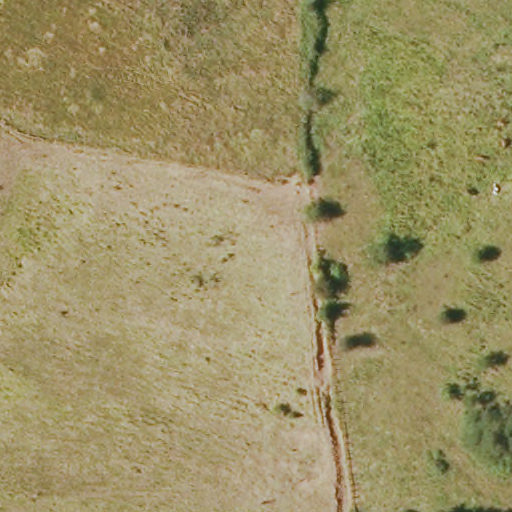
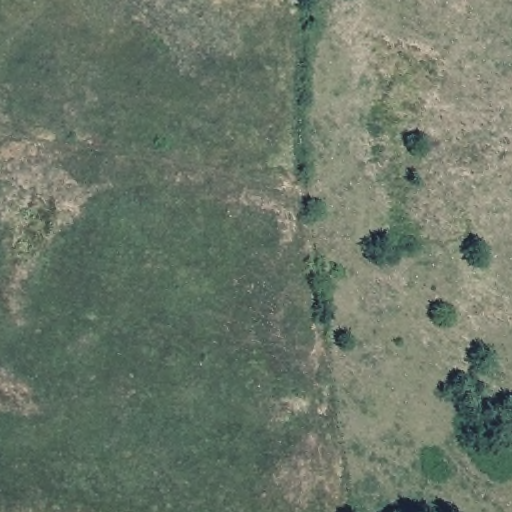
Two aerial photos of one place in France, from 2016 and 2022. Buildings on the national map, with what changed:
[]

